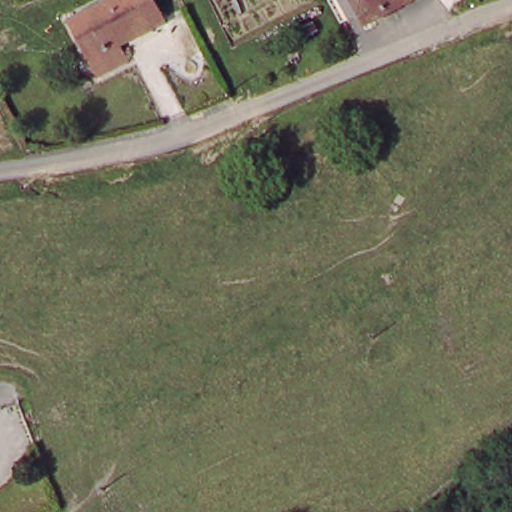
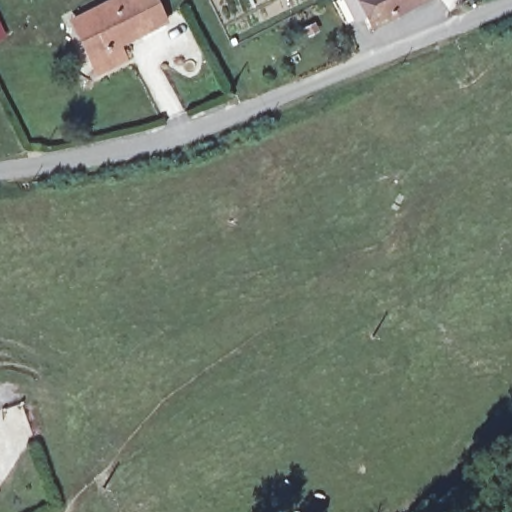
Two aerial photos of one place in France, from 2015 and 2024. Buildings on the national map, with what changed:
unchanged [(113,39),(122,54),(96,66),(77,27),(93,20),(87,7),(101,0),(151,0),(159,15),(113,39)]
unchanged [(336,0),(415,0),(370,23),(364,12),(360,15),(343,23),(332,2),(336,0)]

